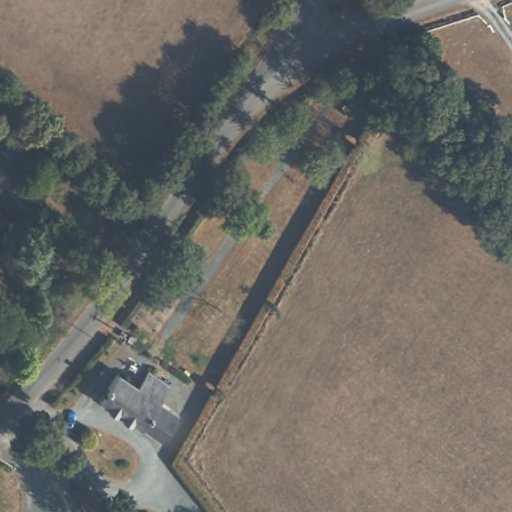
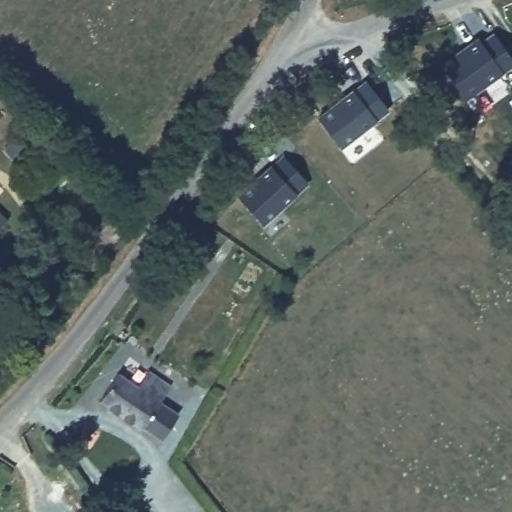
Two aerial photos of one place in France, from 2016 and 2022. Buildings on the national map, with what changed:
new [(492,32),(512,60),(512,67),(502,73),(465,99),(438,63),(476,37),(480,41),(492,32)]
new [(356,85),(380,116),(341,148),(315,116),(356,85)]
new [(270,164),(283,154),(309,183),(297,195),(263,223),(235,194),(270,164)]
unchanged [(8,225),(0,234),(0,216),(8,225)]
unchanged [(171,386),(164,395),(161,401),(175,413),(158,435),(143,423),(139,429),(102,399),(118,375),(138,388),(153,370),(171,386)]

